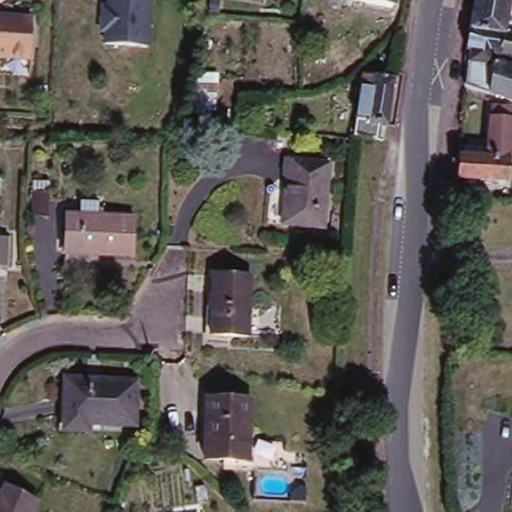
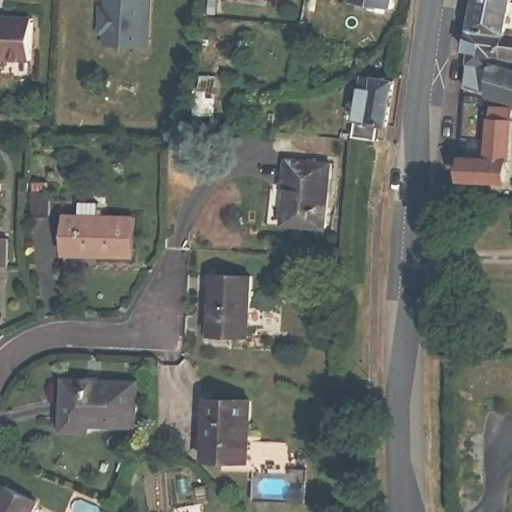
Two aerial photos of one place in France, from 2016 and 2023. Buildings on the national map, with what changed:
unchanged [(109,42),(110,30),(105,24),(105,10),(111,5),(111,0),(153,0),(150,45),(109,42)]
unchanged [(391,0),(397,0),(396,1),(391,0)]
unchanged [(512,0),(512,26),(510,34),(475,27),(479,2),(479,0),(512,0)]
unchanged [(31,14),(30,17),(30,55),(0,54),(0,12),(31,14)]
unchanged [(495,64),(471,61),(468,60),(475,27),(510,34),(512,34),(512,57),(498,55),(495,64)]
unchanged [(497,65),(498,64),(512,68),(512,100),(470,86),(471,61),(495,64),(497,65)]
unchanged [(383,124),(380,137),(356,134),(366,75),(396,80),(390,125),(383,124)]
unchanged [(272,103),(255,109),(253,103),(270,97),(272,103)]
unchanged [(468,177),(468,156),(491,158),(496,100),(512,106),(512,162),(510,180),(468,177)]
unchanged [(261,130),(264,111),(273,112),(271,130),(261,130)]
unchanged [(40,169),(22,169),(22,145),(40,145),(40,169)]
unchanged [(285,157),(331,160),(325,231),(280,227),(285,157)]
unchanged [(134,209),(134,259),(64,257),(65,207),(134,209)]
unchanged [(9,266),(0,266),(0,238),(10,238),(9,266)]
unchanged [(255,335),(215,336),(214,272),(252,270),(255,335)]
unchanged [(133,426),(84,425),(84,432),(66,432),(67,393),(60,393),(60,377),(135,380),(133,426)]
unchanged [(252,462),(210,465),(207,402),(250,400),(252,462)]
unchanged [(34,512),(0,512),(0,496),(4,487),(39,503),(34,512)]

